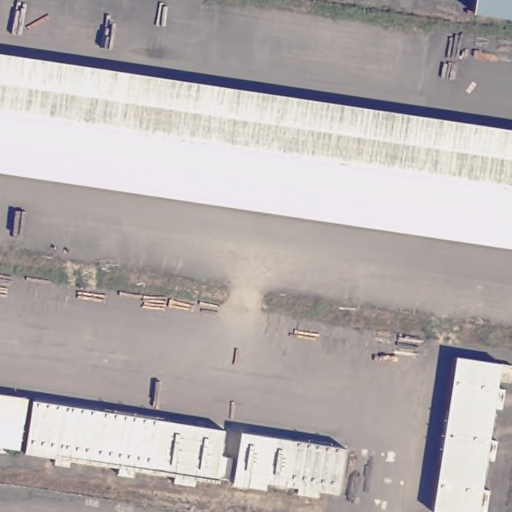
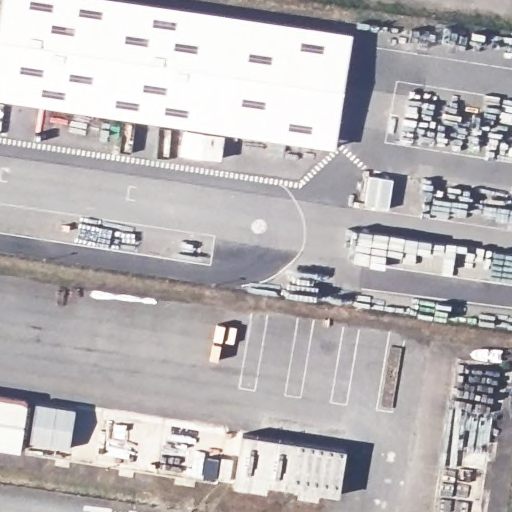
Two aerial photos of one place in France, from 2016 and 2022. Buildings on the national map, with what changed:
new [(179,155),(183,126),(0,98),(0,15),(2,0),(135,0),(354,32),(353,39),(230,20),(213,131),(225,133),(222,160),(179,155)]
new [(353,39),(336,149),(213,131),(230,20),(353,39)]
demolished [(0,174),(0,56),(512,131),(512,249),(0,174)]
demolished [(511,369),(509,385),(495,382),(493,391),(500,392),(496,411),(490,410),(485,440),(492,441),(489,462),(482,462),(478,489),(485,491),(482,512),(429,512),(453,360),(511,369)]
unchanged [(339,496),(320,493),(319,498),(302,495),(303,490),(265,485),(264,490),(247,487),(248,481),(233,479),(232,486),(42,456),(44,449),(0,442),(0,393),(346,448),(339,496)]

